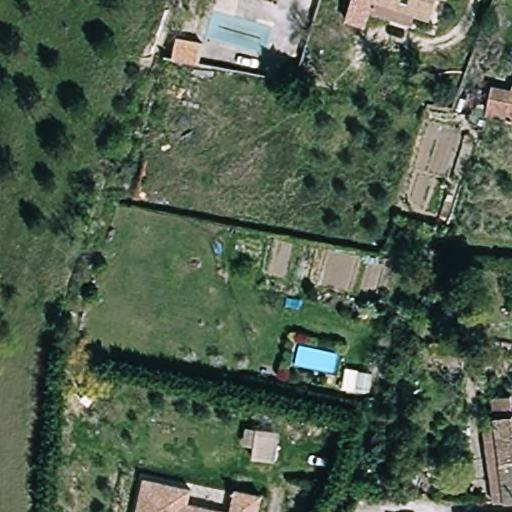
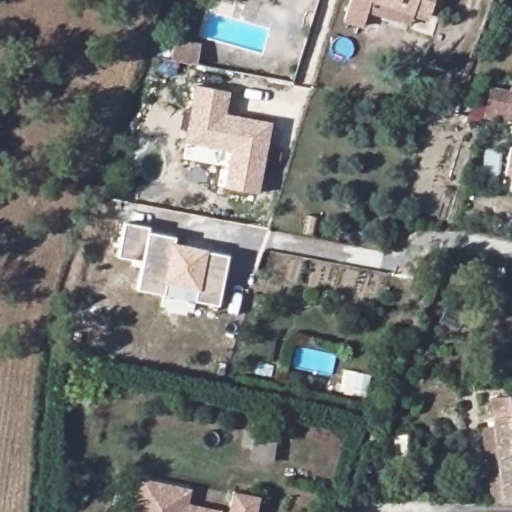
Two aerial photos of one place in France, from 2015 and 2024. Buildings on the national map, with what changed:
unchanged [(348,0),(448,0),(443,17),(425,12),(423,18),(378,4),(373,19),(344,10),(348,0)]
new [(201,44),(197,66),(170,61),(174,40),(201,44)]
new [(271,122),(259,193),(223,187),(229,152),(185,142),(194,84),(230,91),(226,114),(271,122)]
unchanged [(488,85),(512,88),(512,120),(486,117),(488,85)]
unchanged [(512,173),(509,172),(512,161),(512,173)]
new [(229,257),(219,306),(137,291),(144,262),(117,257),(124,222),(148,227),(147,232),(175,238),(174,243),(207,250),(207,252),(229,257)]
unchanged [(353,376),(376,382),(372,401),(348,395),(353,376)]
unchanged [(492,489),(501,489),(497,445),(487,446),(485,427),(495,426),(492,398),(510,395),(511,413),(512,412),(512,500),(493,501),(492,489)]
unchanged [(268,460),(250,460),(250,447),(239,447),(239,433),(250,433),(267,433),(268,460)]
unchanged [(193,487),(190,501),(230,509),(235,492),(256,496),(253,512),(138,512),(146,476),(193,487)]

